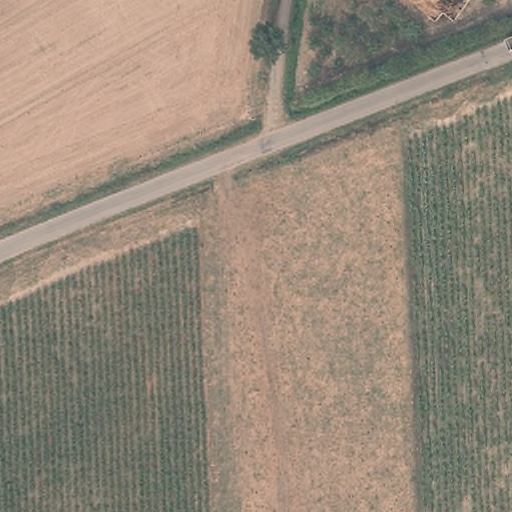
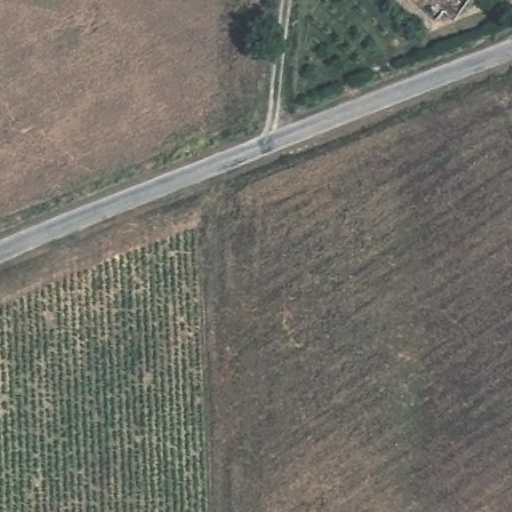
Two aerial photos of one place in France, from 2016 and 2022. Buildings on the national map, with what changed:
[]

